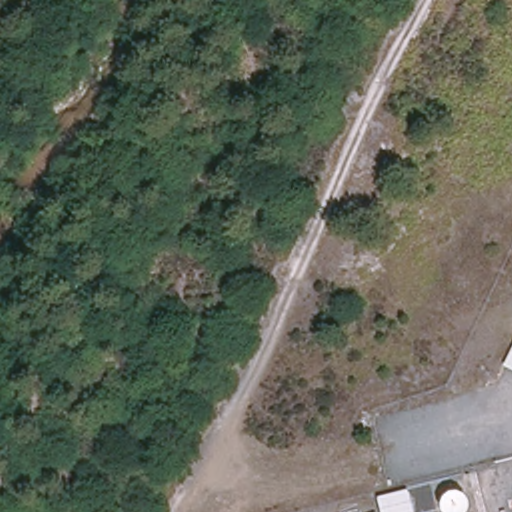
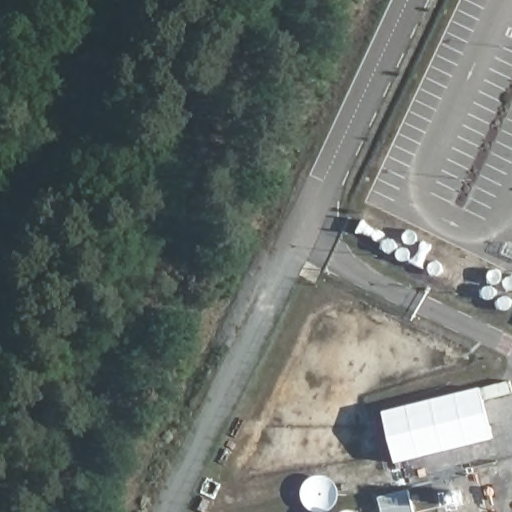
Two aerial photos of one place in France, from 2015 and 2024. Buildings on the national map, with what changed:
new [(512,387),(512,393),(483,400),(493,439),(395,463),(382,411),(510,380),(512,387)]
unchanged [(413,512),(379,512),(375,498),(406,488),(413,512)]

